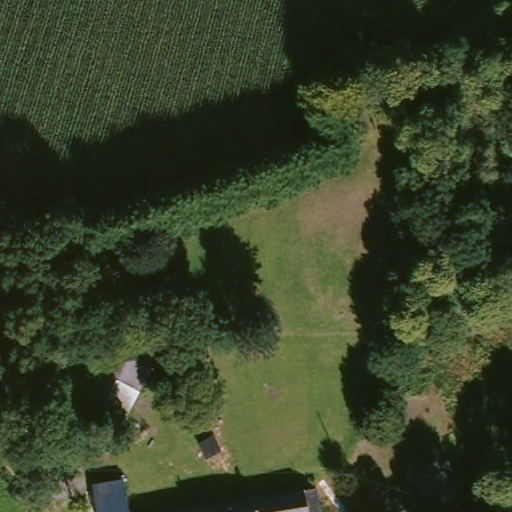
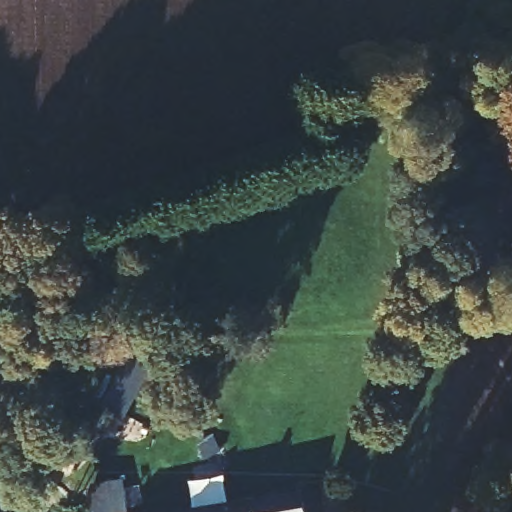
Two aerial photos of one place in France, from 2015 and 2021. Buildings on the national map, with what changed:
unchanged [(110,404),(123,364),(146,374),(129,411),(110,404)]
unchanged [(223,453),(224,462),(204,463),(203,441),(217,440),(221,448),(223,453)]
unchanged [(128,511),(125,512),(96,512),(91,483),(123,478),(128,511)]
unchanged [(316,508),(317,512),(194,512),(231,505),(312,489),(316,508)]

